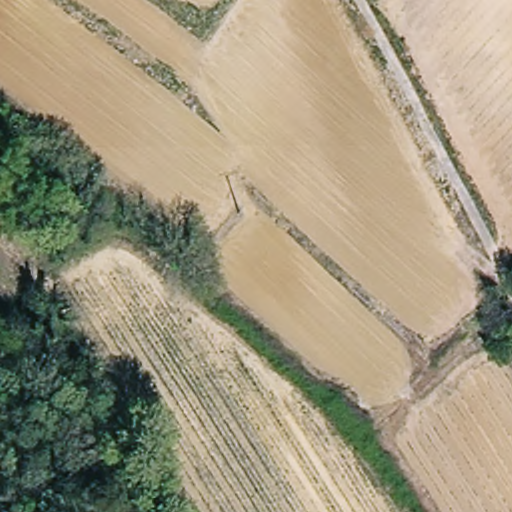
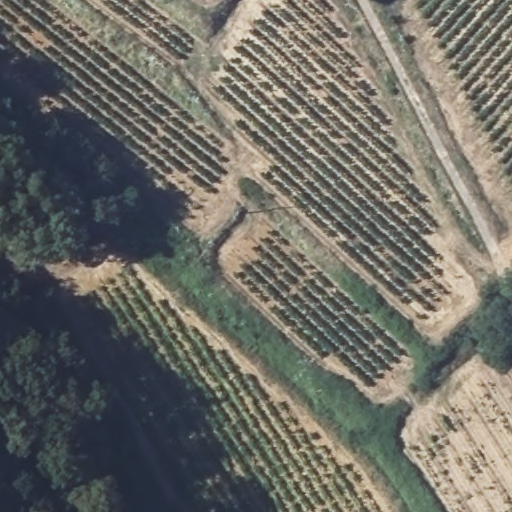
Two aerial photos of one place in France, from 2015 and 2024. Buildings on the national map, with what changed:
[]

